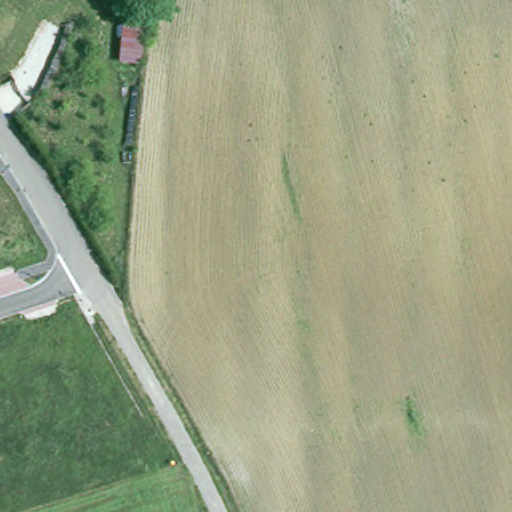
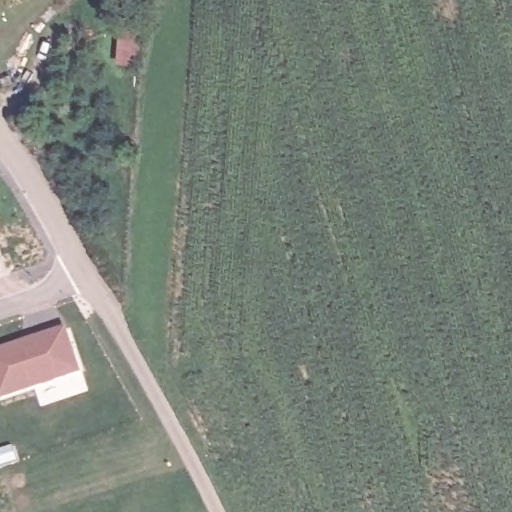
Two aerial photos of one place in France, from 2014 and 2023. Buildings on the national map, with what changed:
new [(84,373),(0,401),(0,350),(68,327),(84,373)]

